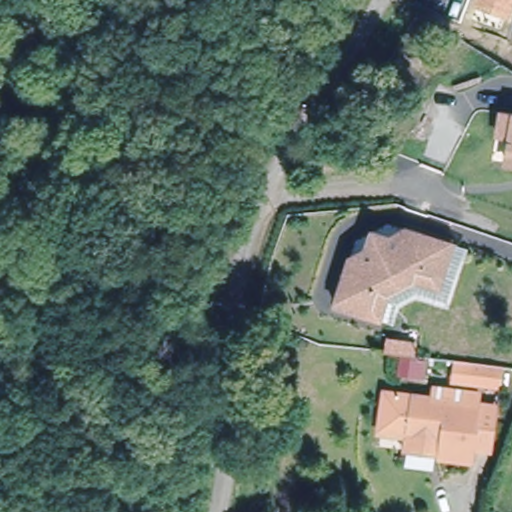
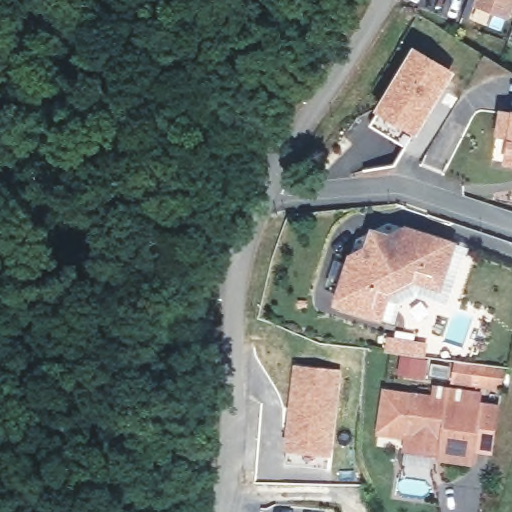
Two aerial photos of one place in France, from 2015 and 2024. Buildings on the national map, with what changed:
unchanged [(475,0),(512,0),(512,13),(510,20),(473,5),(475,0)]
new [(457,71),(417,136),(375,110),(412,48),(457,71)]
unchanged [(502,163),(494,161),(503,114),(512,115),(512,116),(512,165),(502,163)]
unchanged [(327,302),(346,257),(405,229),(450,247),(437,279),(412,270),(367,291),(357,315),(327,302)]
unchanged [(367,291),(412,270),(437,279),(432,292),(414,286),(380,302),(371,321),(357,315),(367,291)]
new [(383,350),(387,334),(431,341),(424,379),(397,374),(401,353),(383,350)]
new [(342,367),(333,455),(285,449),(294,363),(342,367)]
unchanged [(497,388),(462,382),(465,364),(500,369),(497,388)]
unchanged [(471,455),(442,451),(444,437),(381,428),(386,391),(460,401),(461,392),(478,394),(471,455)]
unchanged [(498,404),(491,455),(472,453),(482,401),(498,404)]

